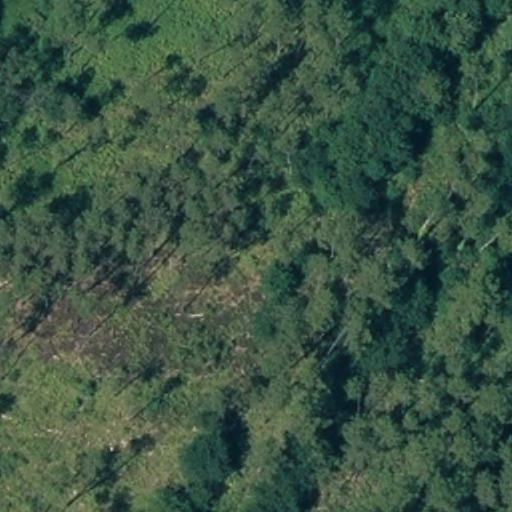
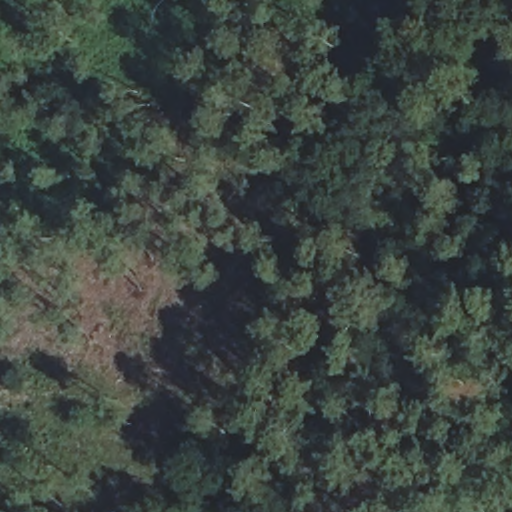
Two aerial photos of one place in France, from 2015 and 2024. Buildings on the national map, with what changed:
[]

